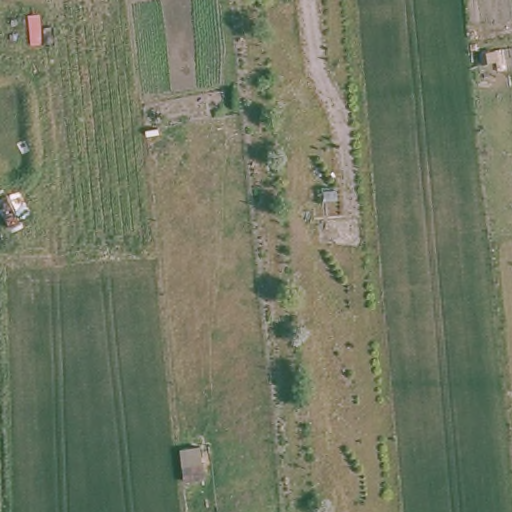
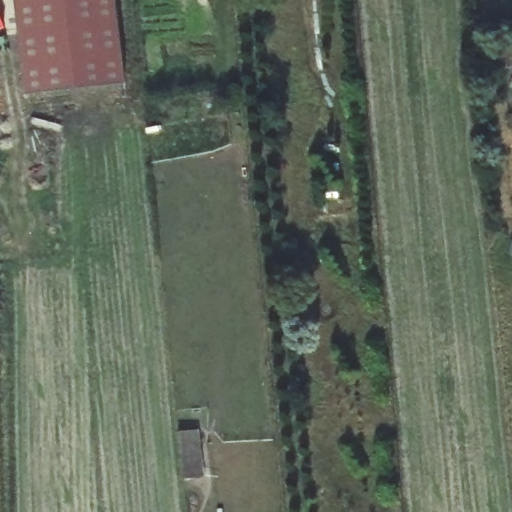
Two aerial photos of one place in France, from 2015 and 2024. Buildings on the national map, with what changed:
new [(26,98),(14,0),(115,0),(125,87),(26,98)]

